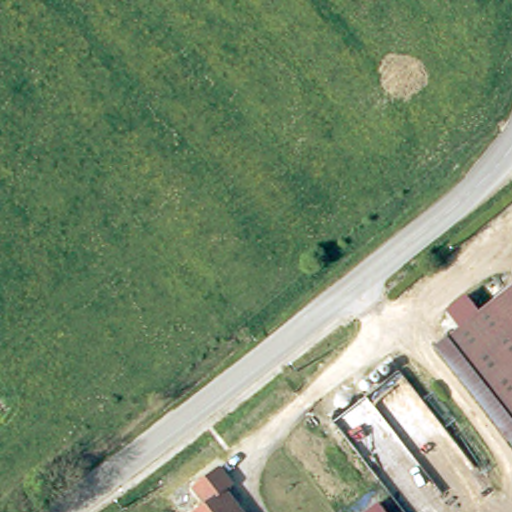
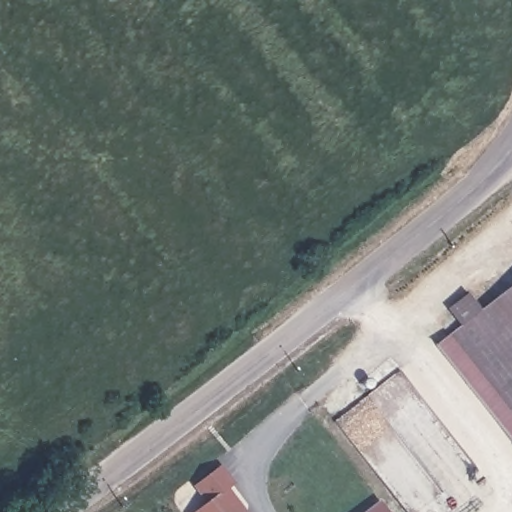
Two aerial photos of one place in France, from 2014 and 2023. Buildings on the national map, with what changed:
unchanged [(452,336),(512,289),(512,413),(452,336)]
unchanged [(512,413),(512,437),(439,345),(452,336),(512,413)]
unchanged [(211,511),(199,495),(224,475),(238,492),(231,498),(242,512),(210,512),(211,511)]
unchanged [(378,502),(385,512),(364,512),(378,502)]

